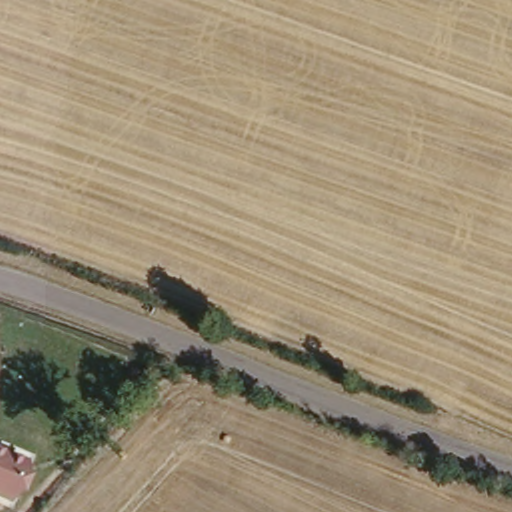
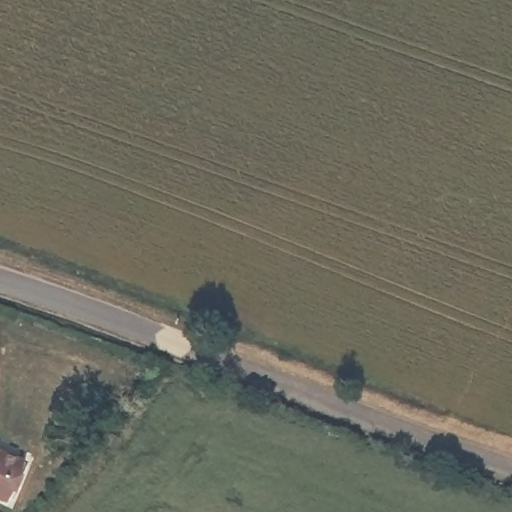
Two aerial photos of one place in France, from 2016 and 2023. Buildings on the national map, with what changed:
unchanged [(11,505),(0,500),(0,455),(26,466),(11,505)]

